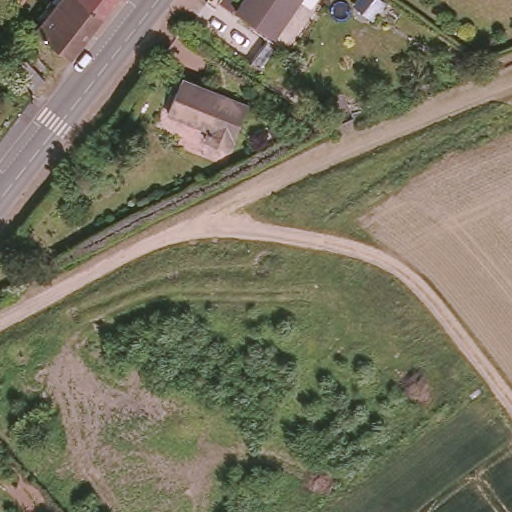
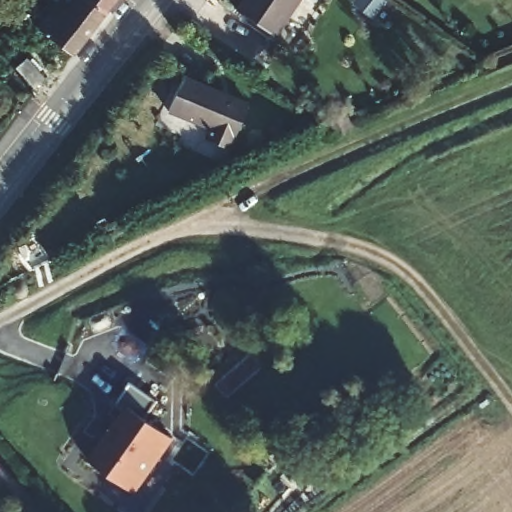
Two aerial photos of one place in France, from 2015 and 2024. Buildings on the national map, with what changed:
unchanged [(14,0),(24,0),(20,5),(14,0)]
unchanged [(118,0),(107,14),(74,58),(38,30),(61,0),(118,0)]
unchanged [(236,3),(238,0),(294,0),(270,31),(236,3)]
unchanged [(46,79),(35,89),(18,69),(29,60),(46,79)]
unchanged [(244,94),(230,141),(206,135),(210,121),(161,108),(170,75),(244,94)]
new [(88,459),(123,409),(117,403),(131,382),(157,401),(145,419),(176,438),(137,494),(88,459)]

